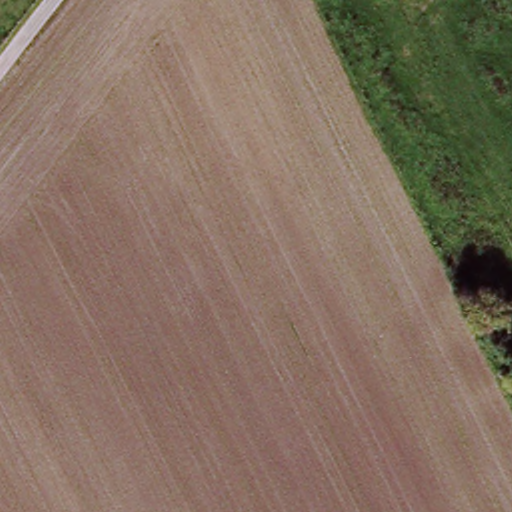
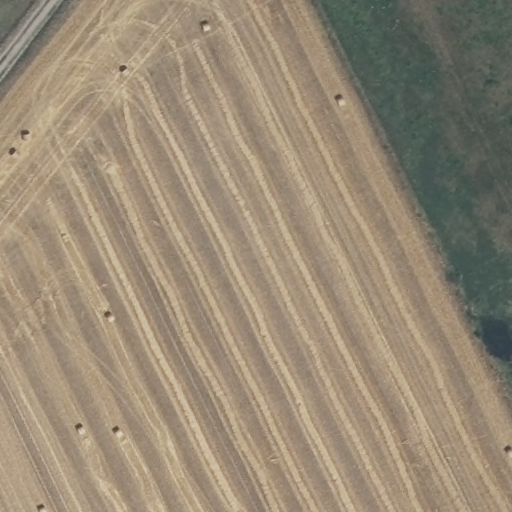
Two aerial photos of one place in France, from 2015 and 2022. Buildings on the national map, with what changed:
[]

